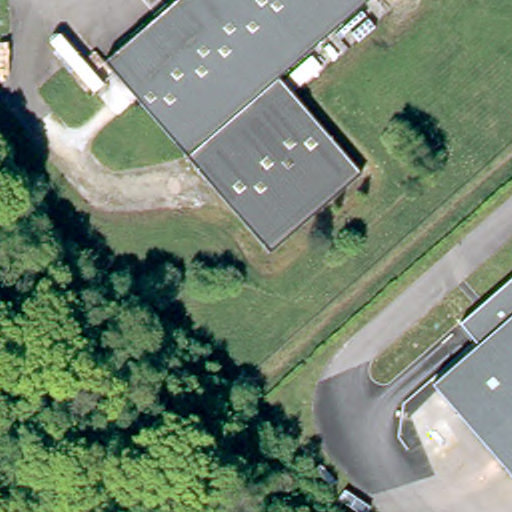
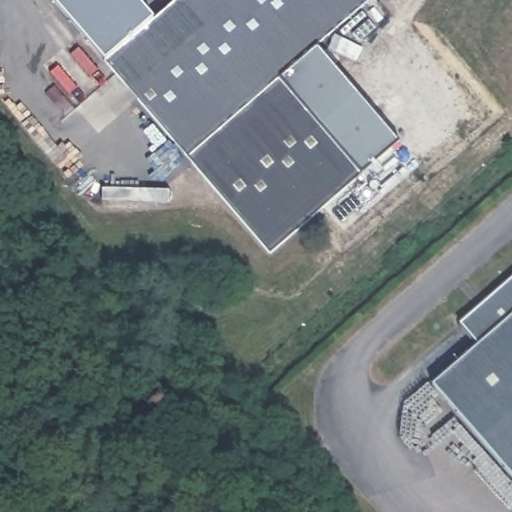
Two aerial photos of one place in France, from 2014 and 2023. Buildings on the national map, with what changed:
new [(106,56),(102,59),(52,0),(136,0),(151,17),(106,56)]
unchanged [(281,72),(363,166),(271,246),(106,56),(171,0),(364,0),(281,72)]
new [(281,72),(315,42),(395,136),(363,166),(281,72)]
unchanged [(431,380),(477,340),(458,319),(512,272),(512,473),(431,380)]

